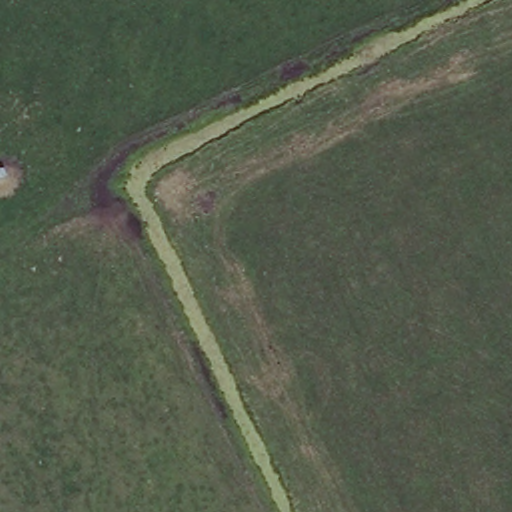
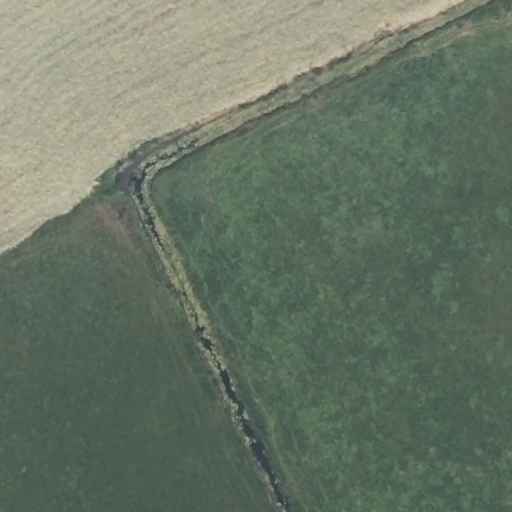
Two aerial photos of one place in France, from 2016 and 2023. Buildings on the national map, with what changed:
[]

